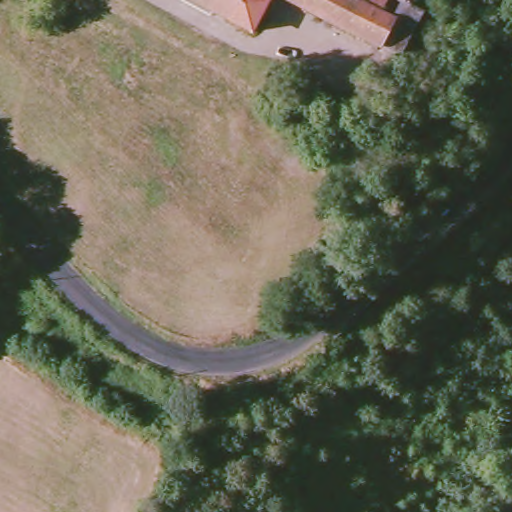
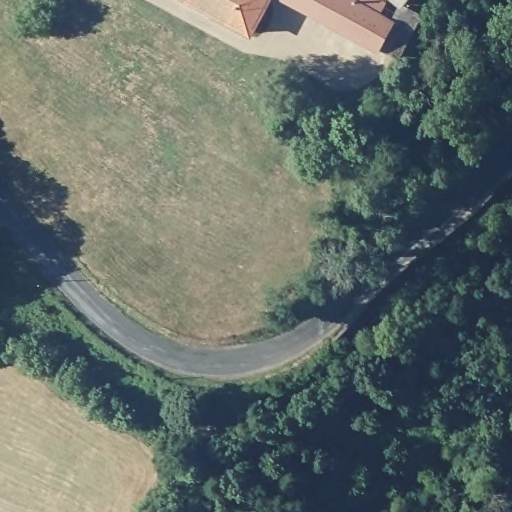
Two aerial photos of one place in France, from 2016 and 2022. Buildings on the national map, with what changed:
unchanged [(174,0),(256,0),(241,35),(174,0)]
unchanged [(390,64),(372,54),(368,52),(339,36),(269,0),(363,0),(371,4),(381,8),(391,12),(401,16),(414,24),(390,64)]

